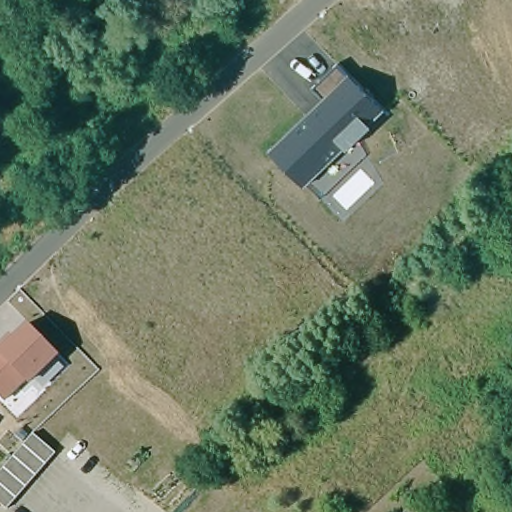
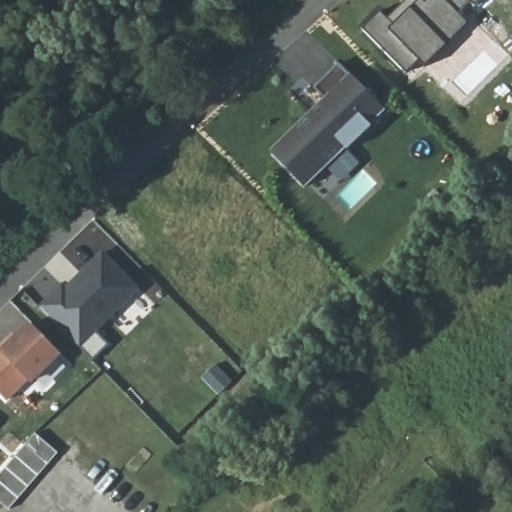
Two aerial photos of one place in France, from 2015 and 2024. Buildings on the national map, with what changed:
new [(392,26),(416,0),(482,0),(473,8),(469,3),(457,15),(467,25),(422,68),(418,62),(405,75),(360,30),(378,12),(392,26)]
unchanged [(383,112),(368,127),(370,129),(346,152),(344,150),(324,169),(320,165),(303,182),(307,186),(303,189),(268,153),(272,150),(276,153),(293,137),(290,134),(307,118),(310,121),(327,104),(323,100),(312,89),(338,65),(383,112)]
new [(60,285),(63,287),(100,252),(136,290),(76,347),(37,307),(60,285)]
unchanged [(11,337),(15,341),(28,327),(58,357),(30,383),(27,380),(5,402),(0,397),(0,348),(11,337)]
unchanged [(57,455),(8,511),(0,504),(0,475),(35,435),(57,455)]

